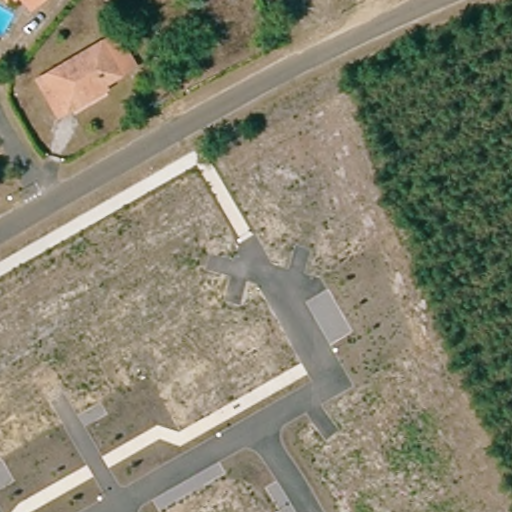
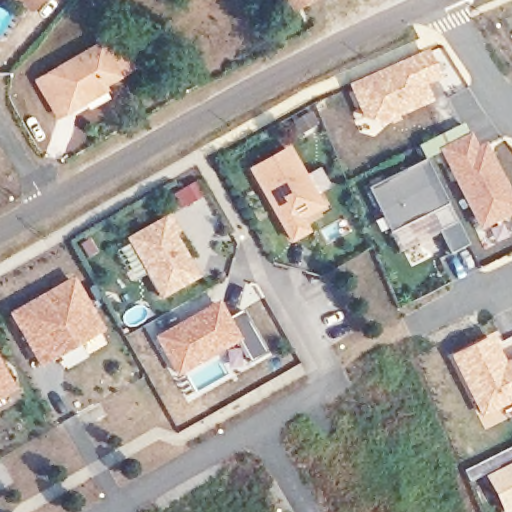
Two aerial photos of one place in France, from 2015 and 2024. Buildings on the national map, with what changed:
unchanged [(29,0),(41,0),(35,6),(29,0)]
new [(313,0),(293,10),(288,0),(313,0)]
unchanged [(102,41),(120,32),(139,64),(124,74),(57,120),(33,85),(102,41)]
new [(380,126),(364,121),(350,86),(428,51),(440,79),(431,102),(380,126)]
new [(422,157),(418,147),(464,124),(469,135),(471,135),(478,147),(486,144),(512,198),(512,213),(480,230),(441,151),(431,157),(422,157)]
new [(324,206),(303,217),(310,232),(290,241),(248,167),(290,144),(324,206)]
new [(368,190),(426,161),(468,245),(450,255),(440,234),(398,254),(390,234),(368,190)]
new [(200,276),(160,298),(127,237),(163,216),(170,212),(182,232),(178,235),(200,276)]
new [(9,316),(74,279),(103,332),(40,367),(9,316)]
new [(156,338),(219,301),(228,320),(242,312),(266,354),(250,362),(239,341),(176,377),(156,338)]
new [(492,337),(505,363),(512,360),(512,402),(481,417),(451,357),(492,337)]
new [(14,390),(0,397),(0,364),(14,390)]
new [(512,464),(512,511),(510,512),(502,512),(485,477),(512,464)]

